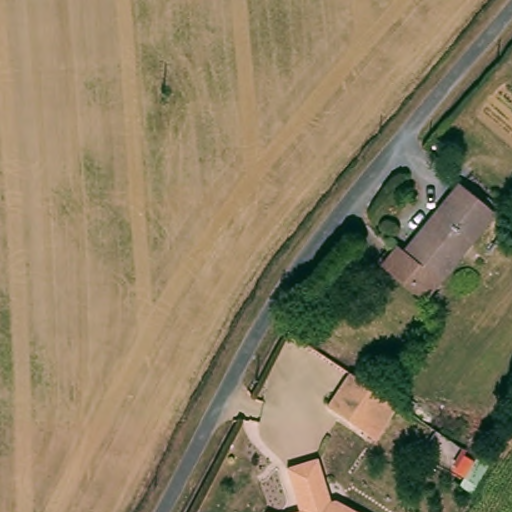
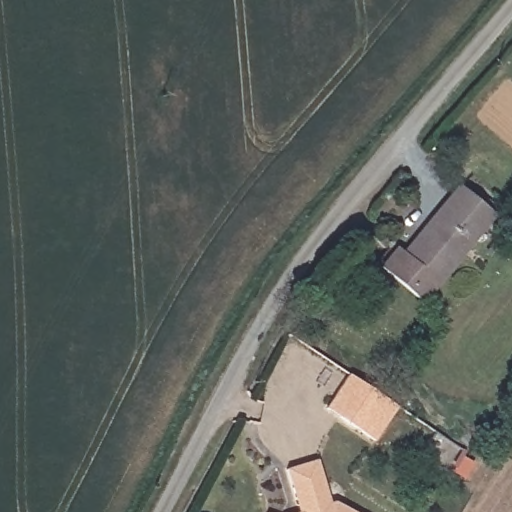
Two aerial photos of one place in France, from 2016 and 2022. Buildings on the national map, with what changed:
unchanged [(464,180),(498,208),(428,296),(383,261),(398,241),(408,249),(464,180)]
unchanged [(356,370),(371,381),(403,400),(380,435),(334,405),(356,370)]
unchanged [(320,457),(325,469),(327,483),(332,497),(342,492),(374,512),(304,512),(292,465),(320,457)]

